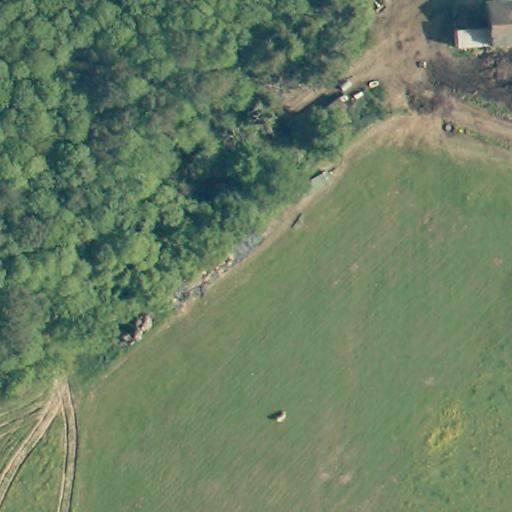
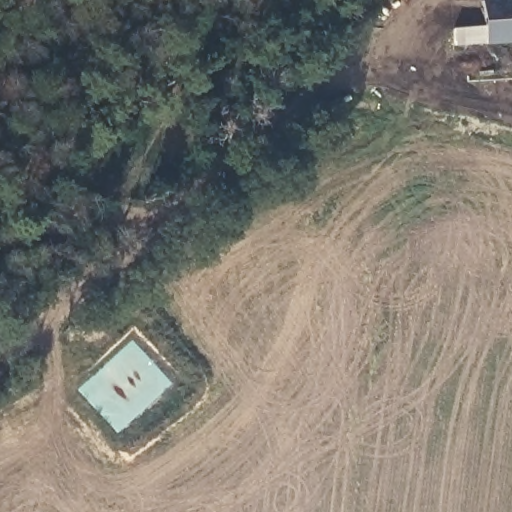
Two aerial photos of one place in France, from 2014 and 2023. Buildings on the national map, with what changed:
unchanged [(453,27),(483,26),(482,0),(512,0),(512,40),(454,44),(453,27)]

